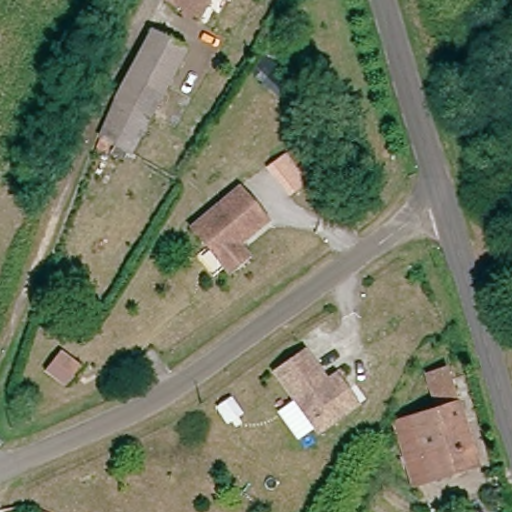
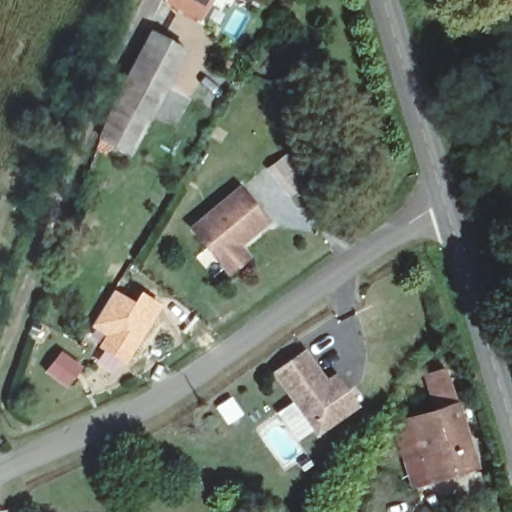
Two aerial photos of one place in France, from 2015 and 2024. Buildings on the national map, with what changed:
unchanged [(200,27),(162,11),(167,0),(213,0),(200,27)]
unchanged [(149,31),(184,49),(132,151),(97,135),(149,31)]
unchanged [(237,189),(266,223),(237,245),(247,258),(226,274),(189,229),(237,189)]
new [(113,289),(133,301),(140,290),(162,305),(141,341),(116,376),(96,363),(102,351),(97,346),(103,336),(89,326),(113,289)]
unchanged [(304,349),(327,379),(336,373),(359,405),(317,433),(272,370),(304,349)]
unchanged [(62,357),(77,370),(62,388),(47,374),(62,357)]
unchanged [(401,443),(397,428),(399,421),(413,416),(437,406),(426,367),(442,362),(474,463),(429,477),(411,482),(401,443)]

